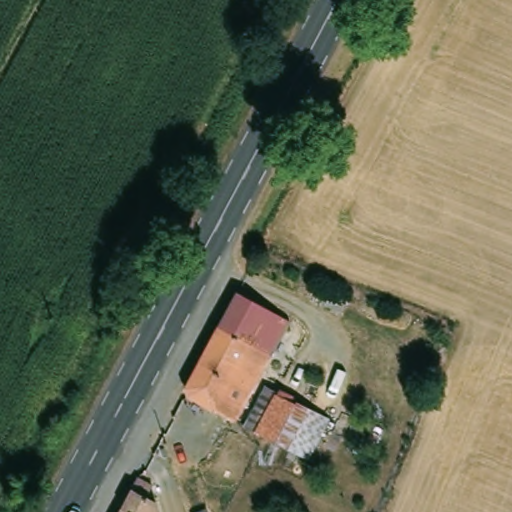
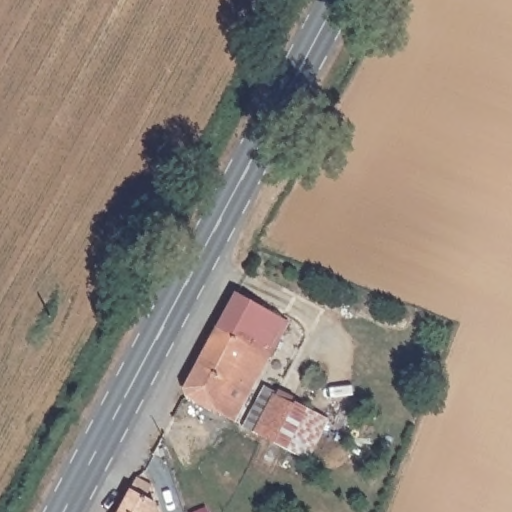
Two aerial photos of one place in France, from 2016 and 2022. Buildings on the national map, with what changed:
unchanged [(288,322),(232,421),(191,399),(186,390),(239,296),(288,322)]
unchanged [(275,390),(333,422),(314,458),(254,427),(275,390)]
unchanged [(158,512),(119,512),(132,487),(136,477),(150,485),(145,494),(155,500),(158,512)]

